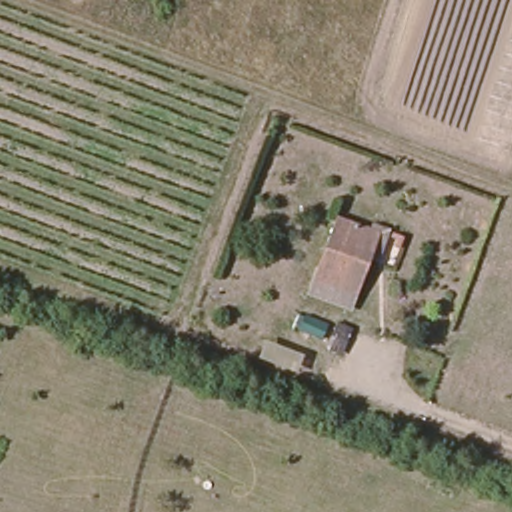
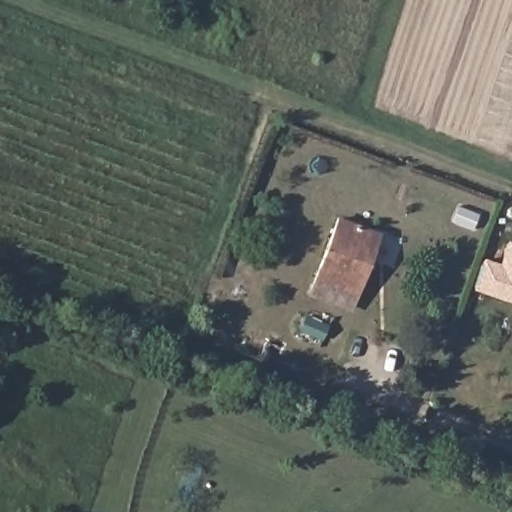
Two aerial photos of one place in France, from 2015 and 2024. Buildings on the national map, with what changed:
unchanged [(372,250),(379,252),(366,288),(360,302),(319,287),(324,273),(346,213),(381,225),(372,250)]
new [(472,288),(484,257),(499,262),(507,240),(512,241),(512,302),(472,288)]

